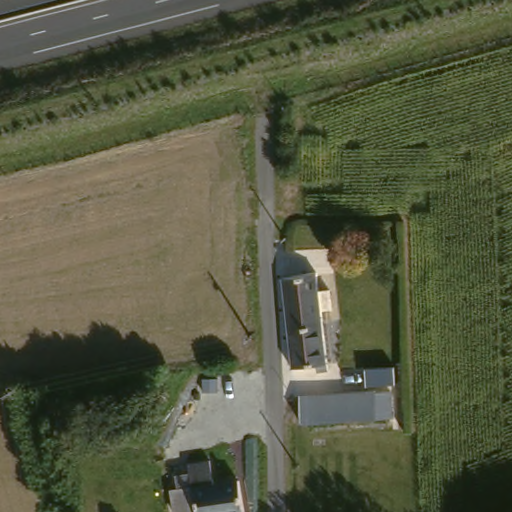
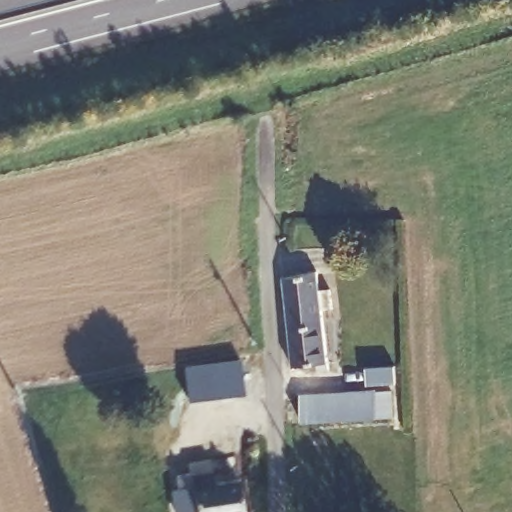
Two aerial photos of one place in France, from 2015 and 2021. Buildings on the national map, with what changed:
unchanged [(293,359),(285,274),(316,271),(324,354),(293,359)]
new [(184,366),(241,359),(245,393),(188,399),(184,366)]
unchanged [(401,389),(400,418),(313,421),(312,390),(401,389)]
unchanged [(205,483),(203,458),(220,458),(223,482),(247,481),(249,512),(205,512),(205,509),(186,510),(184,486),(205,483)]

